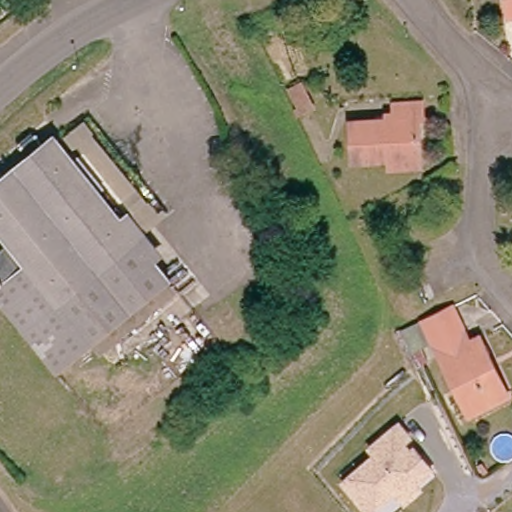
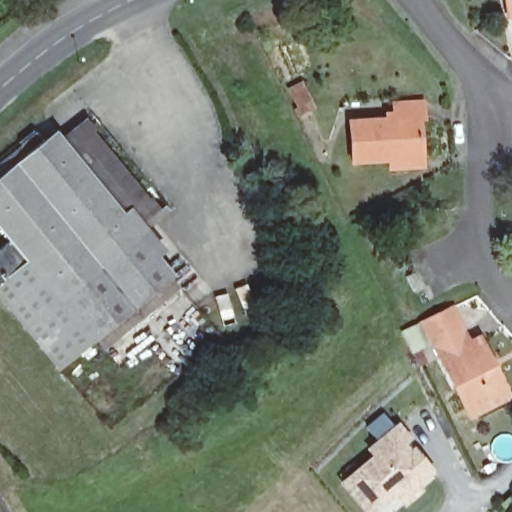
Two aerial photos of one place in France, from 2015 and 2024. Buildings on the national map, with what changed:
unchanged [(506,7),(505,0),(512,0),(512,6),(506,7)]
unchanged [(393,174),(393,166),(357,167),(355,126),(391,124),(398,123),(398,119),(398,109),(427,107),(428,124),(423,124),(427,164),(427,172),(393,174)]
unchanged [(60,368),(0,296),(0,248),(11,240),(0,227),(0,182),(57,137),(172,276),(60,368)]
unchanged [(476,340),(480,338),(487,354),(508,397),(469,416),(433,343),(423,322),(452,308),(462,329),(468,343),(476,340)]
unchanged [(428,345),(412,353),(402,332),(408,328),(418,324),(428,345)]
unchanged [(339,483),(371,455),(365,451),(397,423),(412,440),(406,445),(410,451),(414,447),(436,472),(418,485),(424,492),(405,507),(396,497),(377,512),(363,512),(339,483)]

